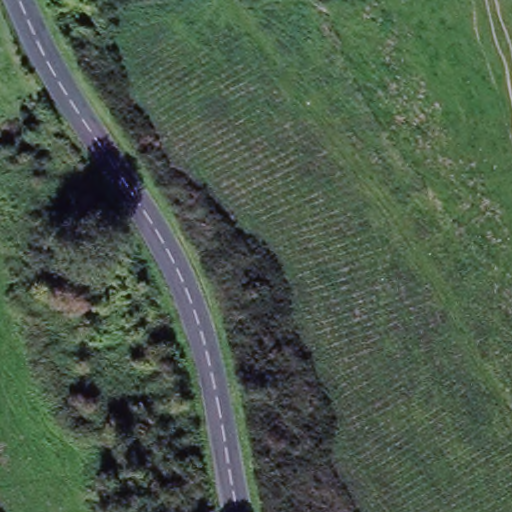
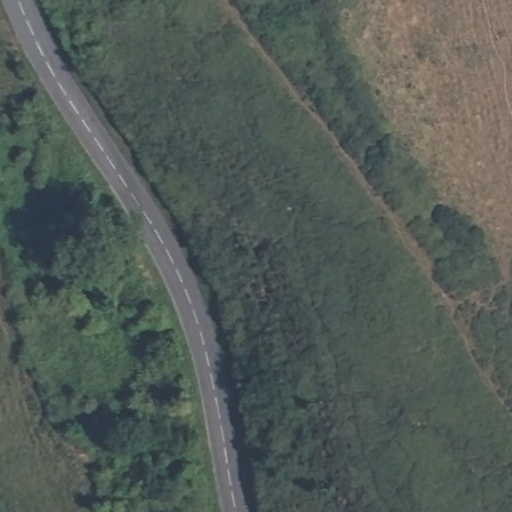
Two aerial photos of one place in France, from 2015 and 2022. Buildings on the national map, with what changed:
[]

